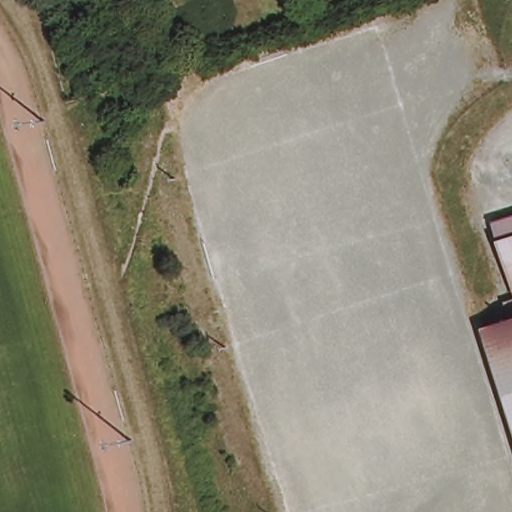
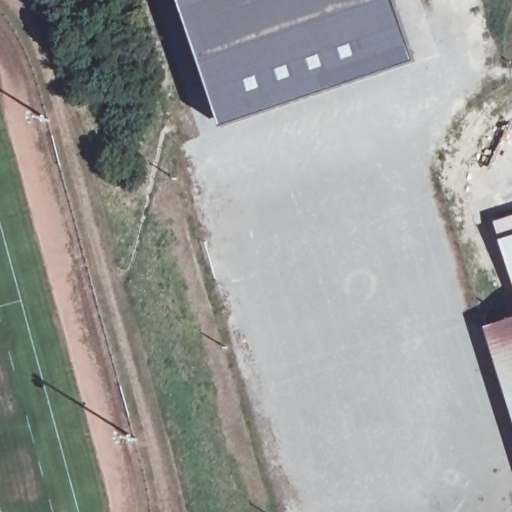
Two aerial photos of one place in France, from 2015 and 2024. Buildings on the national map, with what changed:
new [(395,0),(415,62),(225,125),(181,0),(395,0)]
unchanged [(499,222),(512,219),(512,263),(499,222)]
unchanged [(508,302),(512,301),(512,315),(508,302)]
unchanged [(488,330),(512,324),(512,407),(488,330)]

